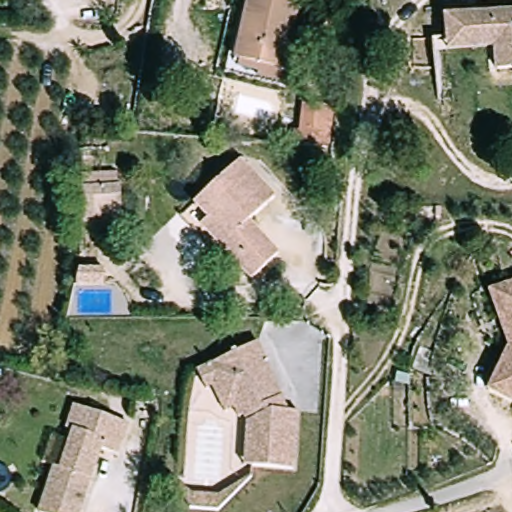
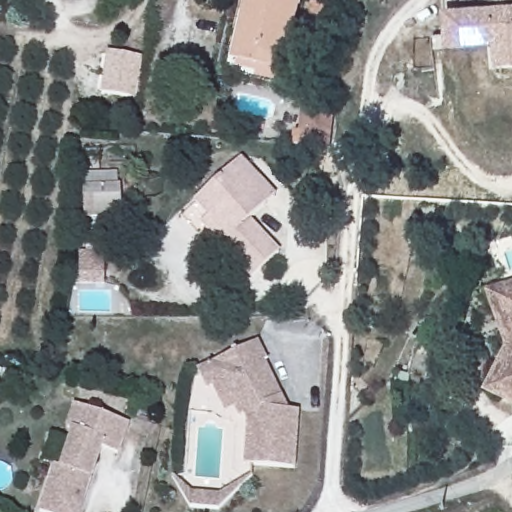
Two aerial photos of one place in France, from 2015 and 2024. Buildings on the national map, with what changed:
unchanged [(55,2),(54,0),(62,0),(55,2)]
unchanged [(286,71),(240,60),(254,0),(305,0),(286,71)]
unchanged [(341,5),(337,39),(318,37),(320,22),(315,21),(318,3),(341,5)]
unchanged [(443,19),(512,6),(512,64),(500,66),(496,46),(450,55),(448,43),(443,19)]
new [(143,55),(137,96),(101,92),(106,51),(143,55)]
unchanged [(293,137),(296,120),(309,121),(313,95),(333,97),(328,140),(293,137)]
unchanged [(279,195),(253,220),(283,251),(258,275),(226,244),(233,237),(200,201),(244,158),(279,195)]
unchanged [(120,172),(121,219),(85,219),(83,196),(86,174),(120,172)]
unchanged [(512,293),(512,310),(506,295),(512,293)]
unchanged [(512,321),(510,315),(512,310),(512,321)]
unchanged [(255,412),(249,415),(242,418),(238,408),(228,412),(216,386),(210,390),(202,370),(215,365),(263,343),(272,363),(270,365),(292,412),(302,413),(296,471),(253,466),(246,466),(251,422),(258,420),(255,412)]
unchanged [(512,343),(512,403),(488,392),(512,343)]
unchanged [(102,448),(83,512),(45,512),(58,467),(65,470),(76,430),(70,428),(76,406),(92,411),(130,422),(120,453),(102,448)]
unchanged [(230,495),(214,510),(185,508),(176,491),(230,495)]

